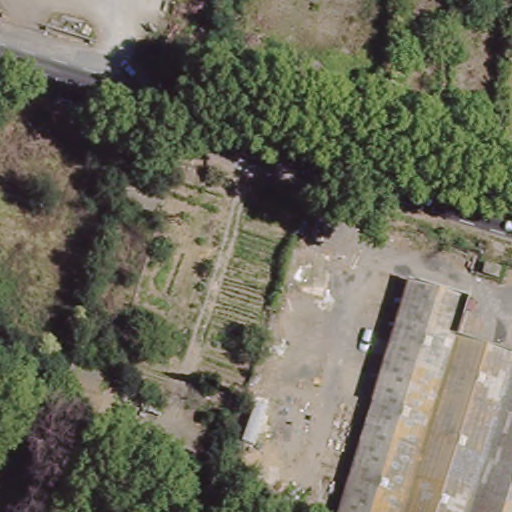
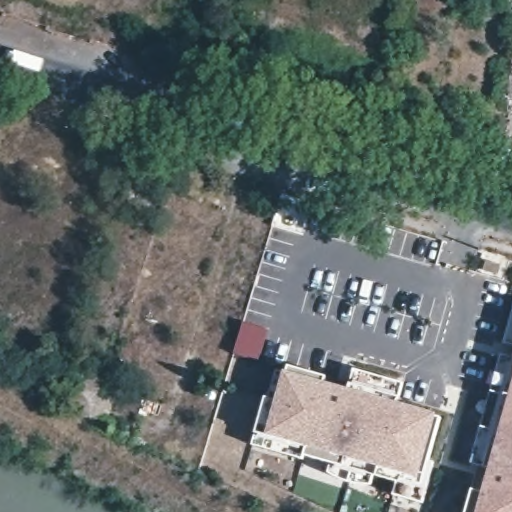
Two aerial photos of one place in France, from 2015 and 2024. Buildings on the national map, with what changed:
unchanged [(128,176),(113,172),(120,148),(135,152),(128,176)]
unchanged [(157,205),(155,212),(121,202),(128,181),(130,175),(147,180),(145,186),(167,192),(162,207),(157,205)]
unchanged [(95,197),(80,192),(86,177),(100,181),(95,197)]
unchanged [(500,265),(498,275),(484,271),(487,261),(500,265)]
demolished [(512,512),(340,512),(412,279),(469,296),(457,333),(512,350),(512,512)]
new [(512,317),(512,345),(505,343),(512,317)]
new [(257,362),(233,353),(244,321),(267,329),(257,362)]
new [(482,493),(489,468),(470,464),(502,356),(512,358),(512,512),(466,512),(473,490),(482,493)]
unchanged [(115,425),(111,433),(95,425),(59,408),(73,362),(111,373),(107,385),(119,388),(108,422),(115,425)]
new [(399,398),(397,403),(440,416),(428,460),(434,462),(423,502),(393,494),(397,482),(373,476),(370,483),(353,483),(341,479),(329,472),(332,462),(304,455),(303,458),(253,445),(257,431),(266,397),(276,398),(286,371),(288,366),(328,377),(325,383),(348,389),(354,369),(402,382),(399,398)]

